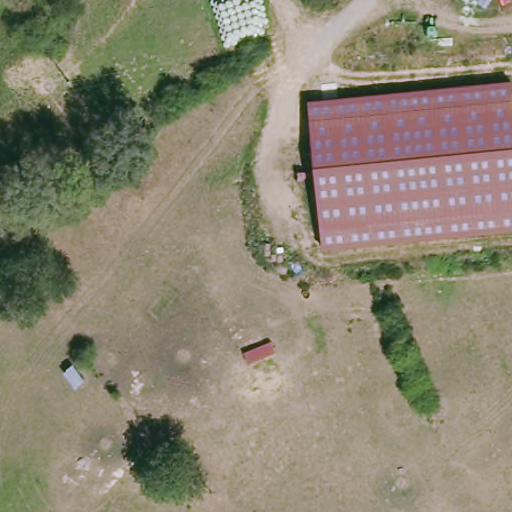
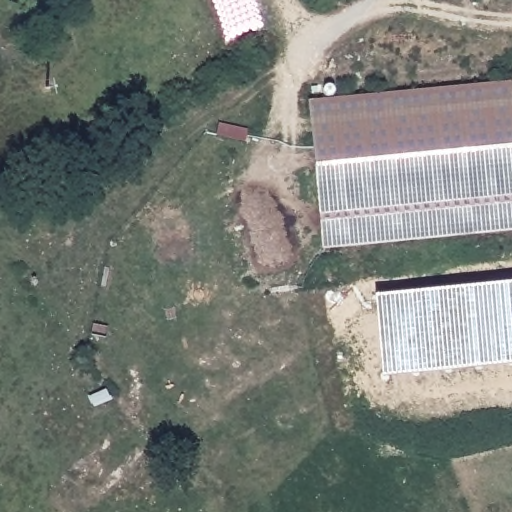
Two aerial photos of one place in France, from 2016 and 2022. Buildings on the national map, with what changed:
unchanged [(309,100),(512,80),(512,85),(512,228),(322,249),(309,100)]
new [(512,366),(384,379),(375,297),(512,283),(512,366)]

